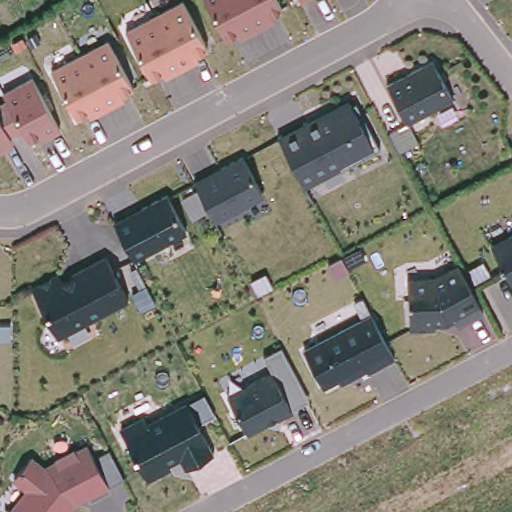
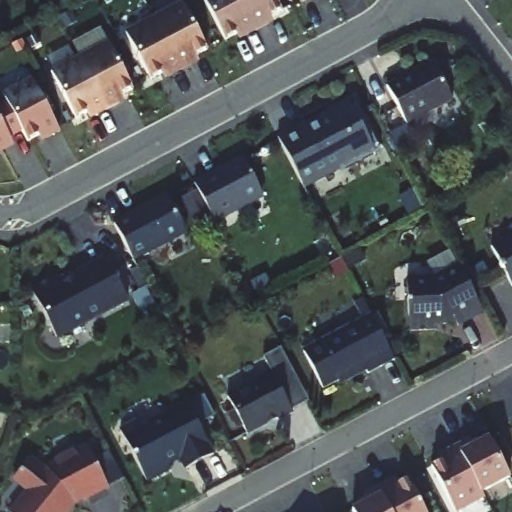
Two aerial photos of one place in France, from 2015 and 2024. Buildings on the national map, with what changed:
unchanged [(271,15),(274,22),(239,40),(236,35),(226,40),(204,0),(276,0),(282,10),(271,15)]
unchanged [(297,0),(310,0),(299,5),(297,0)]
unchanged [(199,63),(164,80),(161,73),(149,79),(125,32),(182,2),(207,50),(195,55),(199,63)]
unchanged [(123,102),(90,119),(87,112),(74,120),(51,71),(108,42),(131,89),(120,94),(123,102)]
unchanged [(386,86),(432,62),(452,100),(406,125),(386,86)]
unchanged [(58,132),(43,140),(39,135),(28,142),(23,132),(10,139),(13,147),(0,154),(0,103),(6,100),(1,93),(31,78),(58,132)]
unchanged [(306,123),(307,126),(324,117),(334,120),(338,110),(349,105),(350,106),(354,104),(379,150),(341,171),(338,166),(301,185),(301,184),(276,138),(306,123)]
unchanged [(406,126),(416,145),(399,154),(389,135),(406,126)]
unchanged [(194,186),(221,172),(219,169),(241,157),(260,195),(243,204),(244,206),(213,222),(194,186)]
unchanged [(131,260),(112,225),(130,215),(131,217),(141,211),(139,210),(166,196),(184,232),(131,260)]
unchanged [(511,287),(502,270),(500,270),(498,266),(499,265),(490,248),(512,236),(512,287),(511,287)]
unchanged [(29,290),(57,275),(61,283),(71,277),(70,275),(104,257),(126,300),(92,318),(91,316),(54,336),(29,290)]
unchanged [(434,325),(434,330),(408,331),(405,280),(433,279),(457,266),(482,313),(456,326),(453,320),(445,324),(434,325)]
unchanged [(370,316),(393,360),(366,374),(362,366),(321,388),(302,352),(370,316)]
unchanged [(263,357),(281,347),(309,400),(289,408),(270,373),(263,357)]
unchanged [(291,413),(276,421),(275,418),(245,434),(226,397),(270,373),(291,413)]
unchanged [(145,413),(148,421),(189,400),(214,450),(188,463),(182,453),(168,460),(171,465),(148,476),(120,426),(145,413)]
new [(512,429),(512,432),(511,430),(512,429)]
new [(468,440),(472,447),(487,440),(507,478),(479,492),(454,447),(468,440)]
unchanged [(54,464),(53,461),(73,451),(74,453),(85,447),(106,487),(82,500),(80,495),(70,500),(71,502),(63,512),(10,512),(26,491),(11,478),(27,459),(43,471),(44,469),(54,464)]
new [(444,459),(442,455),(454,447),(479,492),(481,498),(455,512),(452,512),(429,467),(444,459)]
new [(388,482),(391,487),(407,480),(423,512),(387,512),(375,489),(388,482)]
new [(366,503),(362,496),(375,489),(387,512),(351,512),(351,511),(366,503)]

